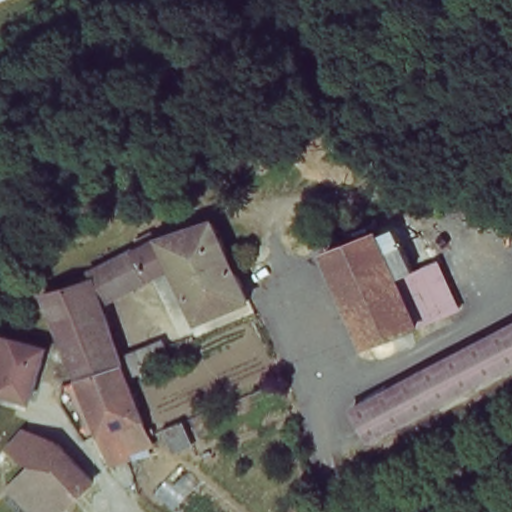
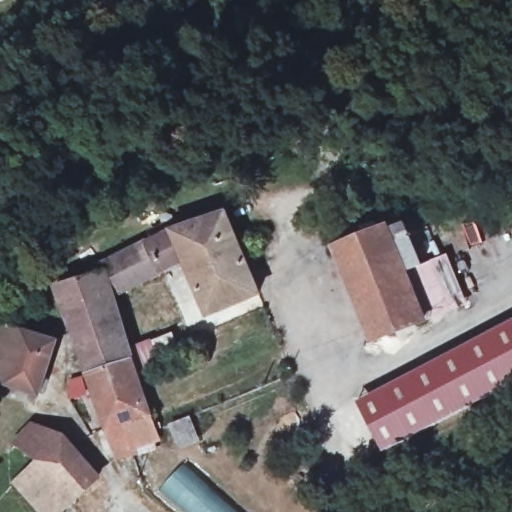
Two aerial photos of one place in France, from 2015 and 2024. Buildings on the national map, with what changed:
unchanged [(227,213),(261,295),(209,317),(186,263),(172,230),(227,213)]
unchanged [(407,332),(403,323),(368,336),(331,241),(384,221),(403,267),(423,315),(419,316),(423,326),(407,332)]
unchanged [(145,283),(135,248),(172,230),(186,263),(145,283)]
unchanged [(113,299),(127,352),(168,336),(176,356),(133,372),(128,360),(87,373),(56,285),(105,269),(105,263),(135,248),(145,283),(113,299)]
unchanged [(440,252),(460,301),(423,315),(403,267),(440,252)]
unchanged [(356,400),(512,320),(512,385),(384,453),(356,400)]
unchanged [(6,324),(55,339),(40,392),(0,380),(0,340),(5,324),(6,324)]
unchanged [(132,450),(117,455),(87,373),(128,360),(133,372),(148,413),(158,441),(132,450)]
unchanged [(91,478),(57,512),(38,512),(12,482),(35,459),(11,442),(29,424),(58,435),(85,467),(94,476),(91,478)]
demolished [(185,463),(241,512),(184,512),(160,491),(185,463)]

